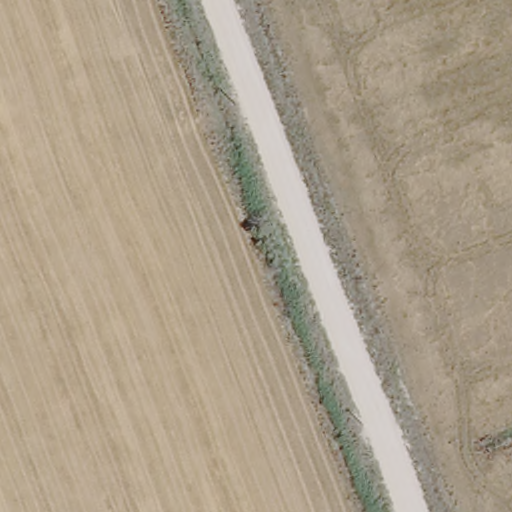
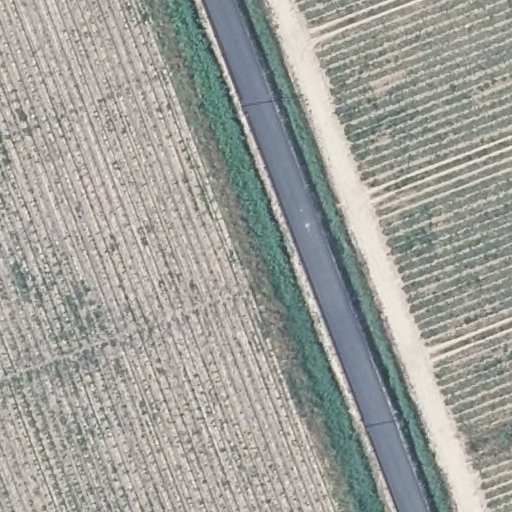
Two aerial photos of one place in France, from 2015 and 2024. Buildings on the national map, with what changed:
[]

